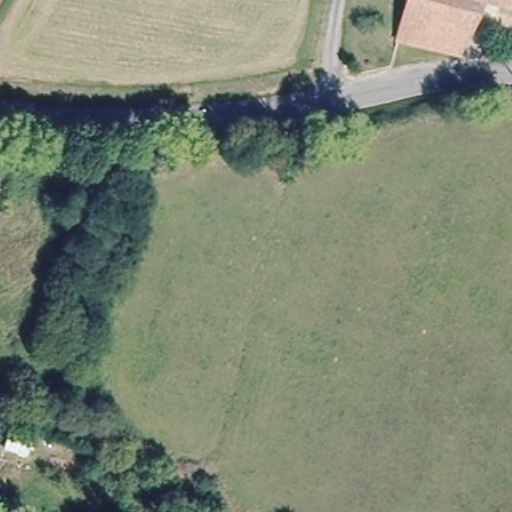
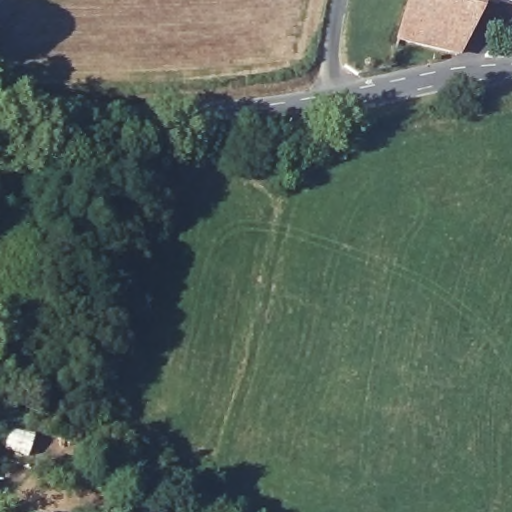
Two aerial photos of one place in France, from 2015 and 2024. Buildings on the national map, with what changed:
unchanged [(512,0),(512,7),(486,1),(470,32),(411,17),(416,0),(512,0)]
unchanged [(460,54),(404,42),(411,17),(470,32),(460,54)]

